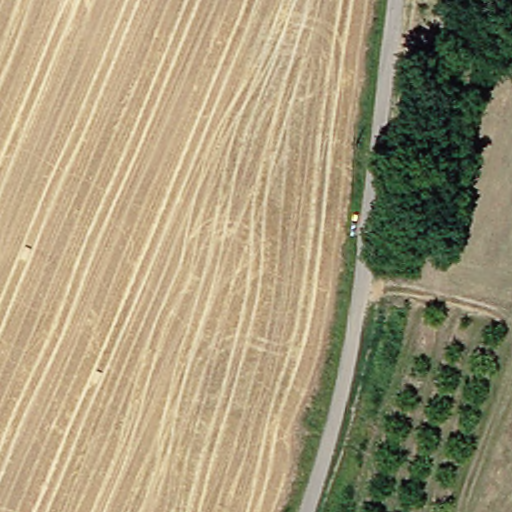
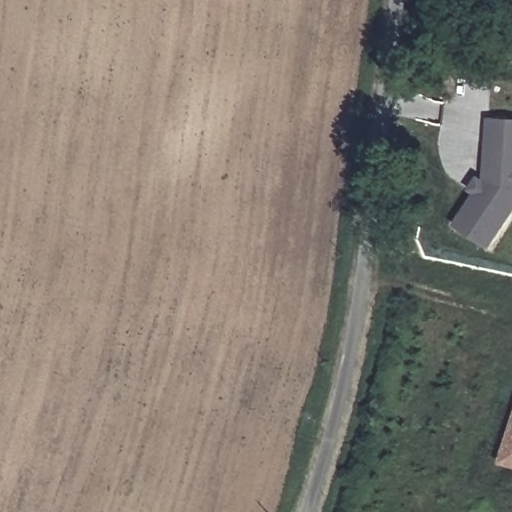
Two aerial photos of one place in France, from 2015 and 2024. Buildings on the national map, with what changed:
new [(481,181),(482,179),(485,118),(512,119),(512,207),(487,247),(453,225),(473,193),(468,189),(475,178),(481,181)]
new [(502,462),(512,428),(512,465),(502,462)]

